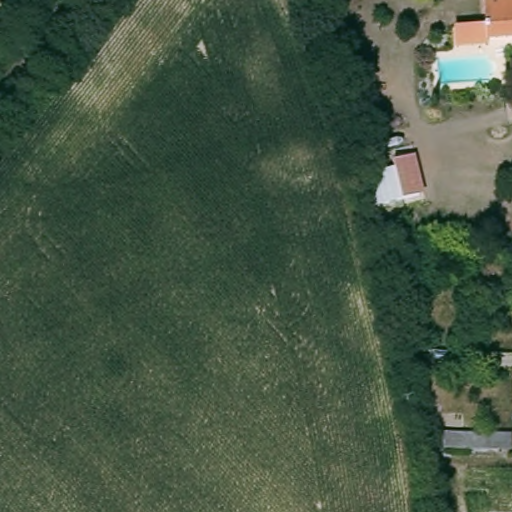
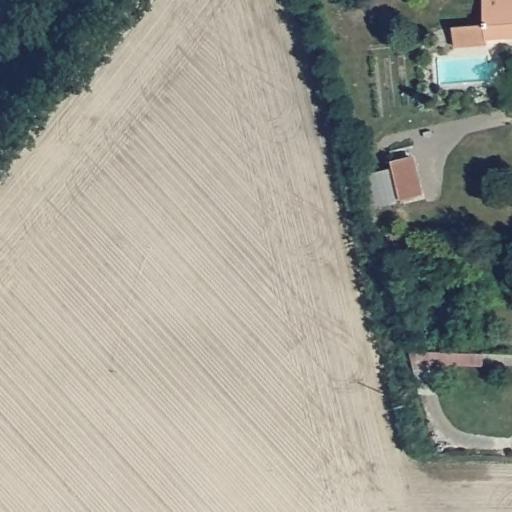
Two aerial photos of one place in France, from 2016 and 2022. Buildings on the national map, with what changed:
unchanged [(488,0),(512,0),(512,40),(487,41),(488,0)]
unchanged [(425,192),(387,201),(375,175),(397,170),(396,160),(418,155),(425,192)]
unchanged [(442,431),(512,433),(512,453),(441,451),(442,431)]

